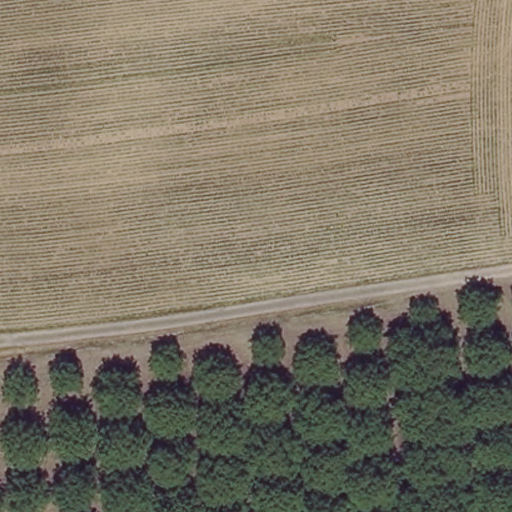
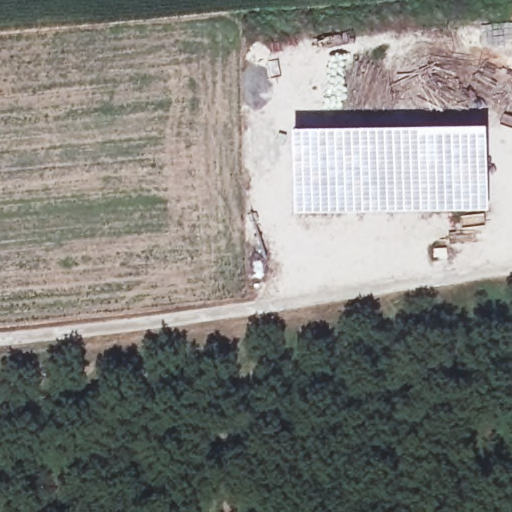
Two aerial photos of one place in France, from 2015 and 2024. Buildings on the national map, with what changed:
new [(489,131),(491,215),(405,215),(296,219),(295,135),(489,131)]

